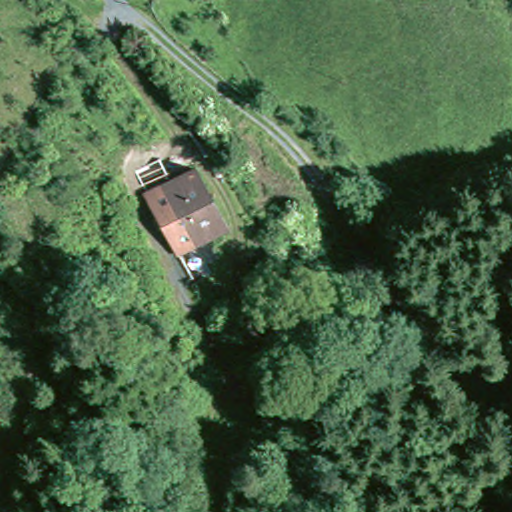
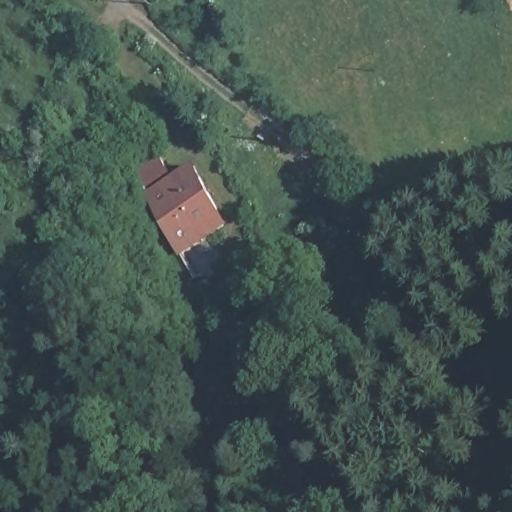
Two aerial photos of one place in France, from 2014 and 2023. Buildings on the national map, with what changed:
unchanged [(148,200),(190,169),(230,221),(187,255),(148,200)]

